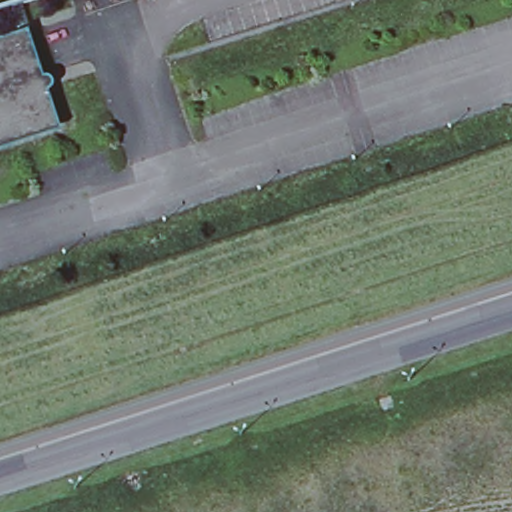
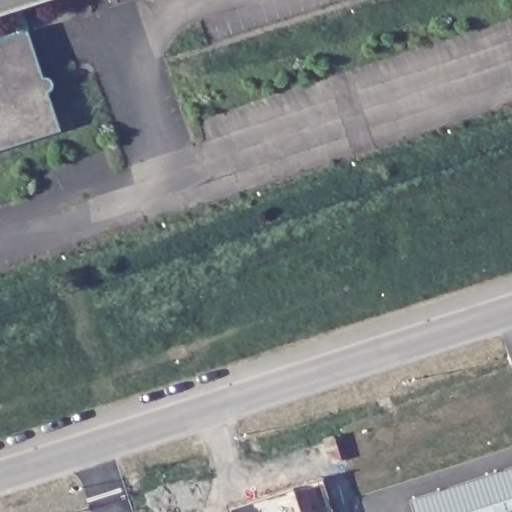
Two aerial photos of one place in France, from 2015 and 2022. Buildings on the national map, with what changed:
unchanged [(48,0),(0,15),(0,0),(48,0)]
unchanged [(23,40),(53,130),(0,147),(0,48),(23,40)]
new [(512,512),(414,512),(409,498),(512,465),(512,512)]
new [(292,489),(323,480),(333,512),(231,512),(230,510),(292,489)]

